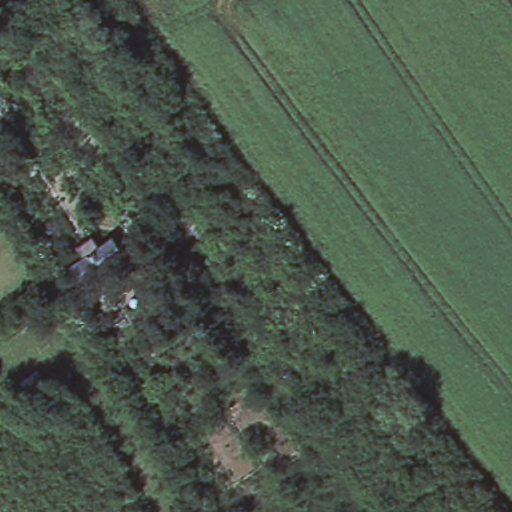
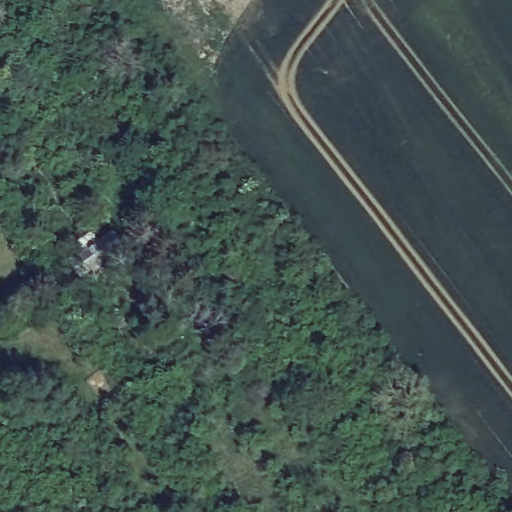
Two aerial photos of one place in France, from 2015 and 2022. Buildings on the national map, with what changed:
unchanged [(70,266),(68,264),(82,253),(75,243),(88,233),(96,242),(110,232),(121,245),(103,259),(106,264),(101,268),(98,264),(80,278),(70,266)]

